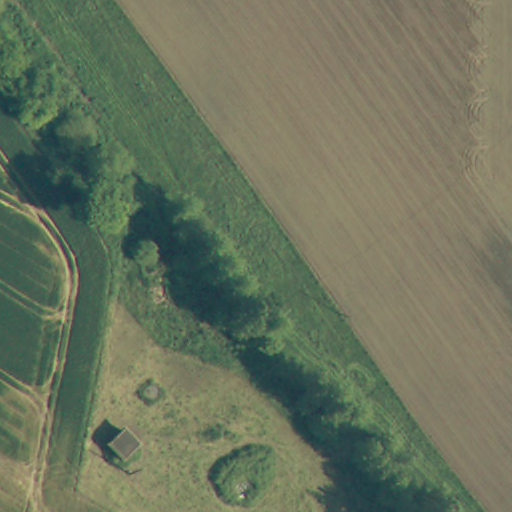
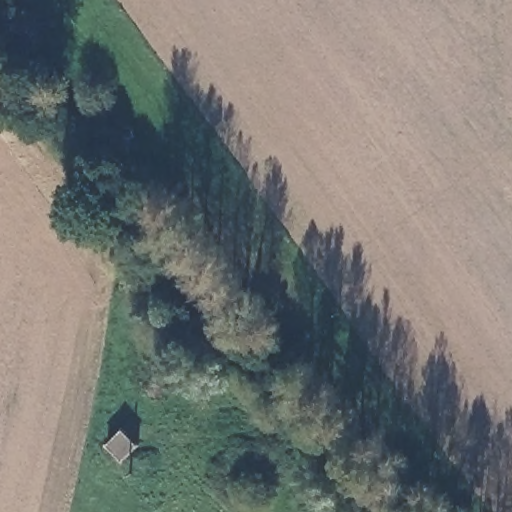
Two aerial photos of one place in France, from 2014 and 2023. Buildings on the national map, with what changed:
unchanged [(172,382),(176,384),(179,387),(180,392),(179,397),(176,400),(167,402),(163,400),(160,397),(159,392),(160,387),(163,384),(167,382),(172,382)]
unchanged [(127,462),(113,442),(135,427),(150,447),(127,462)]
unchanged [(251,473),(257,473),(262,475),(267,479),(271,484),(272,490),(271,496),(267,503),(262,507),(256,508),(250,507),(244,505),(240,501),(237,495),(237,489),(239,483),(242,478),(245,476),(251,473)]

